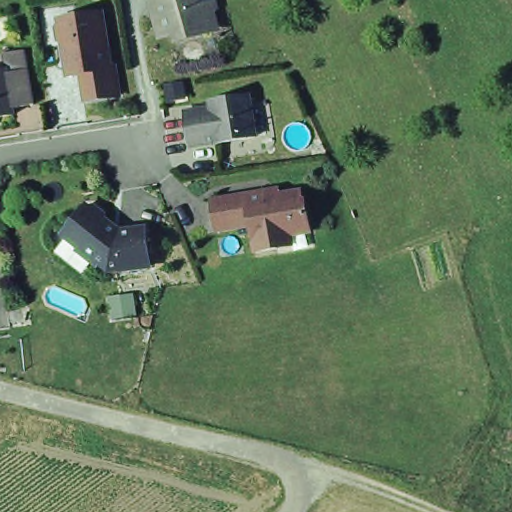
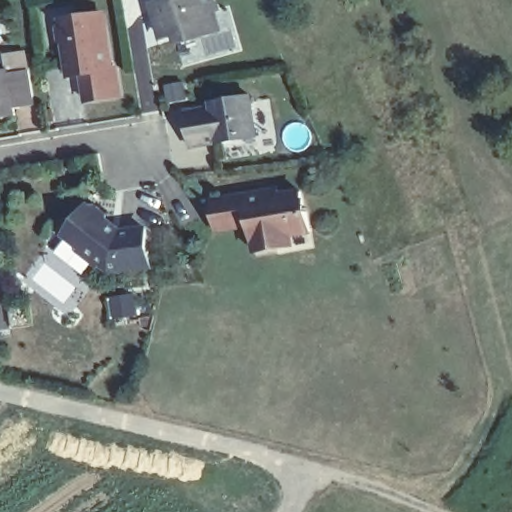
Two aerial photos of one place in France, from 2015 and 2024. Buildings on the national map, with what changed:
unchanged [(214,8),(203,11),(206,21),(207,27),(173,37),(171,31),(158,35),(153,16),(163,14),(159,0),(212,0),(214,8)]
unchanged [(73,60),(70,42),(65,39),(63,27),(66,22),(66,19),(100,13),(103,25),(110,24),(114,49),(118,66),(123,65),(127,94),(93,100),(88,72),(75,75),(73,60)]
unchanged [(15,76),(20,109),(0,112),(0,56),(11,54),(15,76)]
unchanged [(214,106),(212,95),(251,89),(258,130),(219,137),(219,135),(192,140),(187,111),(214,106)]
unchanged [(0,119),(0,114),(1,119),(0,119)]
unchanged [(284,247),(262,250),(258,223),(223,229),(218,200),(272,190),(273,196),(308,190),(311,211),(314,210),(317,230),(298,234),(299,245),(284,247)]
unchanged [(147,265),(118,269),(118,267),(105,268),(95,261),(94,262),(76,249),(78,247),(61,234),(84,205),(86,206),(91,206),(101,214),(102,219),(118,230),(143,227),(147,265)]

